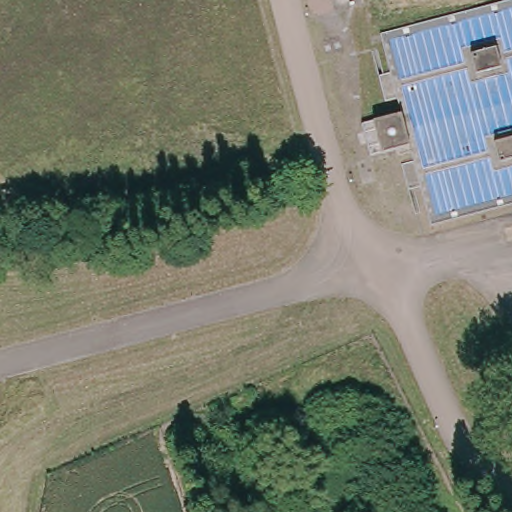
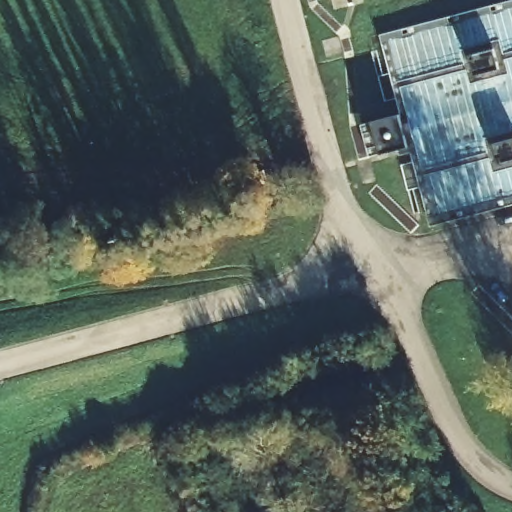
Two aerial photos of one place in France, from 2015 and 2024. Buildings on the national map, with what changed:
unchanged [(499,68),(478,74),(472,56),(493,50),(499,68)]
unchanged [(380,153),(372,123),(401,114),(408,144),(380,153)]
unchanged [(497,161),(495,145),(512,139),(512,158),(497,161)]

